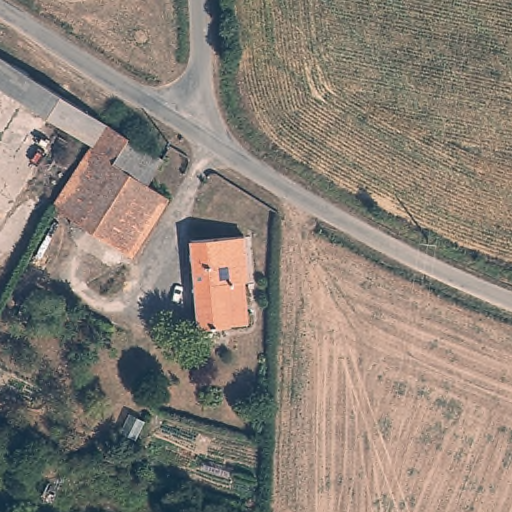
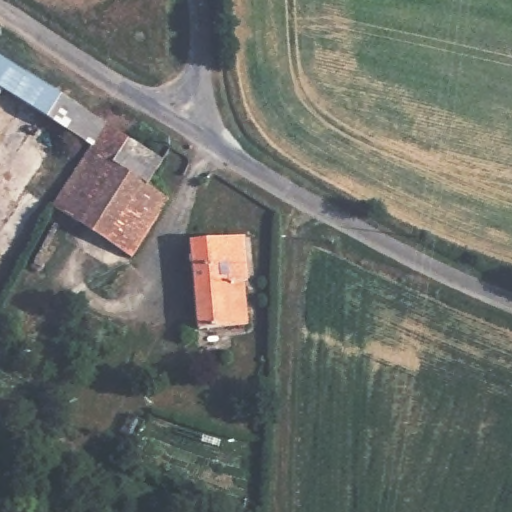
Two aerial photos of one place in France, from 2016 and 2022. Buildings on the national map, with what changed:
unchanged [(101,130),(114,111),(141,128),(99,188),(0,122),(0,67),(101,130)]
unchanged [(197,164),(171,205),(193,220),(150,284),(70,232),(99,188),(141,128),(197,164)]
unchanged [(197,346),(189,239),(242,239),(253,341),(197,346)]
unchanged [(102,364),(130,386),(79,451),(52,429),(102,364)]

